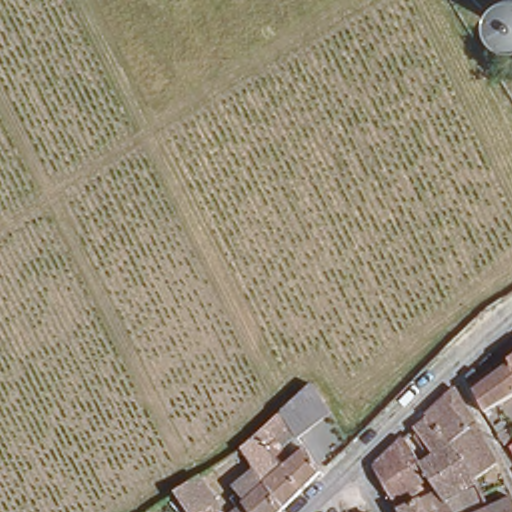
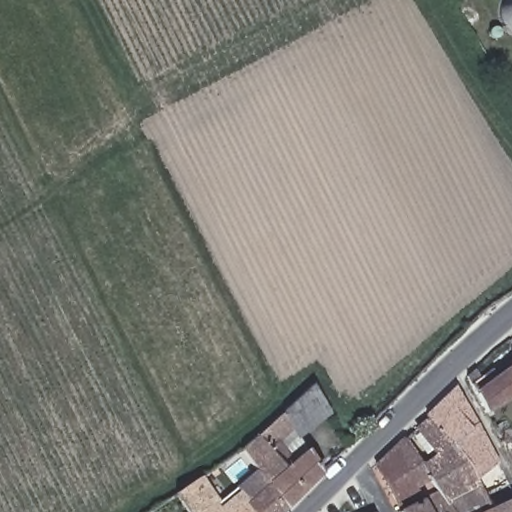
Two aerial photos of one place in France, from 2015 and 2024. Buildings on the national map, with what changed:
unchanged [(487,409),(466,375),(475,367),(483,380),(496,372),(499,376),(512,367),(512,396),(487,409)]
unchanged [(245,501),(227,486),(255,465),(240,443),(314,382),(333,412),(300,436),(309,448),(325,475),(284,512),(229,512),(245,501)]
unchanged [(424,417),(454,388),(474,410),(498,458),(474,470),(464,476),(428,422),(424,417)]
unchanged [(420,461),(431,453),(417,431),(428,422),(464,476),(438,490),(420,461)]
unchanged [(511,437),(506,440),(501,433),(512,427),(512,436),(511,437)]
unchanged [(404,439),(419,462),(408,471),(419,491),(396,503),(376,465),(403,436),(404,439)]
unchanged [(454,511),(452,512),(430,512),(423,498),(438,490),(464,476),(474,470),(485,491),(494,507),(492,508),(493,512),(455,512),(454,511)]
unchanged [(175,491),(204,473),(227,512),(190,512),(175,491)]
unchanged [(400,511),(423,498),(430,512),(401,512),(400,511)]
unchanged [(492,508),(494,507),(512,498),(512,512),(493,512),(492,508)]
unchanged [(454,511),(455,512),(452,512),(454,511)]

